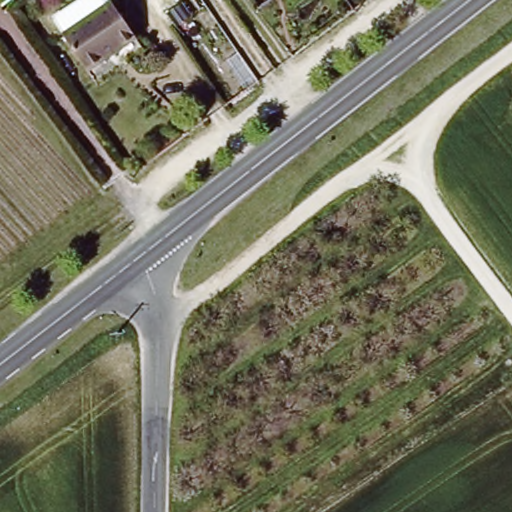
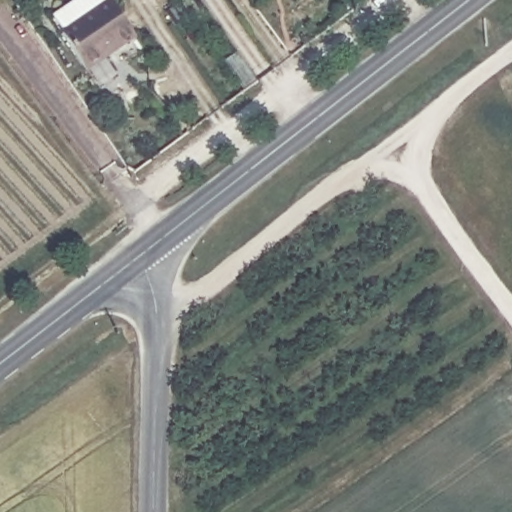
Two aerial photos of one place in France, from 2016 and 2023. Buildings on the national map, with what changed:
unchanged [(139,46),(93,78),(67,42),(113,9),(139,46)]

